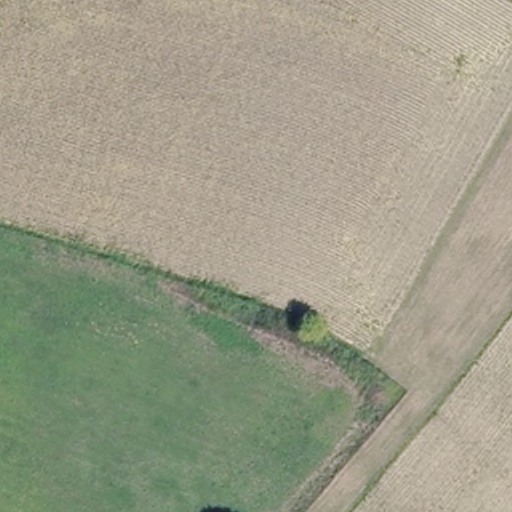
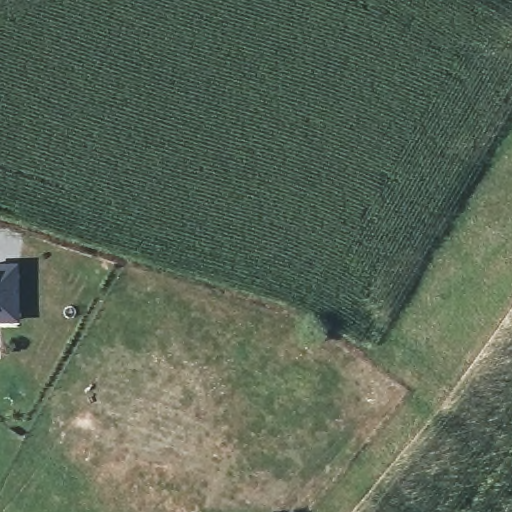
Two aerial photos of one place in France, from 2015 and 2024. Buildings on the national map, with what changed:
new [(16,311),(0,312),(0,256),(14,256),(16,311)]

